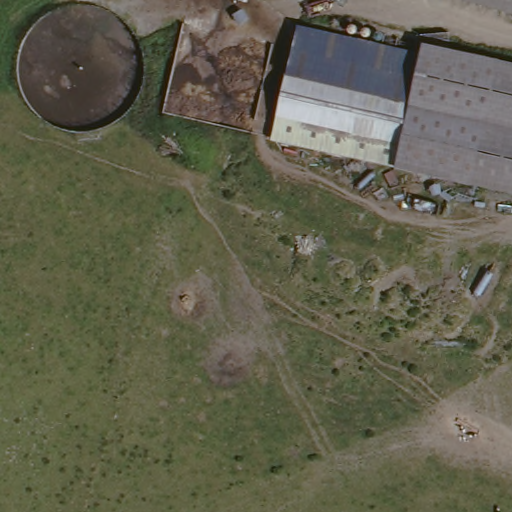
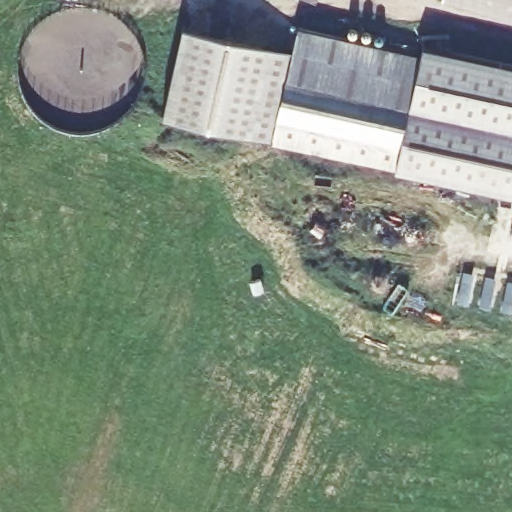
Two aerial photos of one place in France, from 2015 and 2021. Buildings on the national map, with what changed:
unchanged [(512,0),(512,12),(475,0),(512,0)]
unchanged [(302,22),(425,52),(398,167),(272,140),(302,22)]
new [(163,112),(183,26),(295,51),(272,140),(163,112)]
unchanged [(512,60),(512,195),(398,167),(425,52),(429,42),(512,60)]

